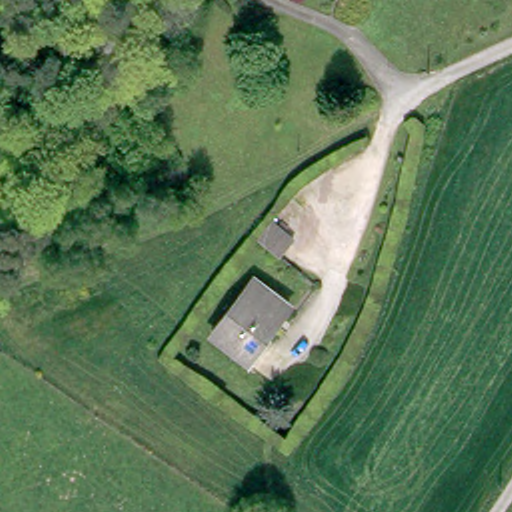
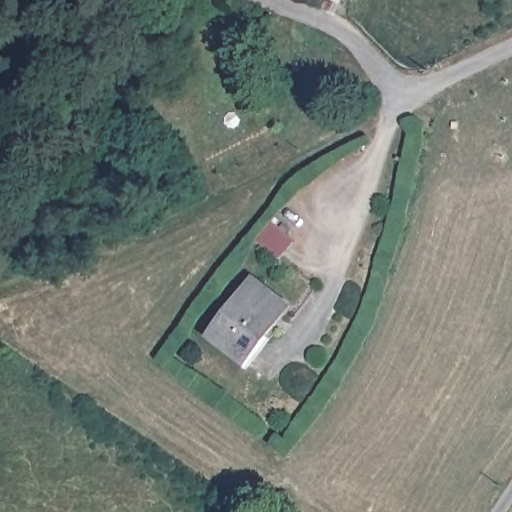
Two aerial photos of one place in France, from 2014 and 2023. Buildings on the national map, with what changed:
unchanged [(261,227),(288,244),(278,262),(250,245),(261,227)]
unchanged [(218,345),(253,287),(289,309),(271,341),(275,343),(259,371),(218,345)]

